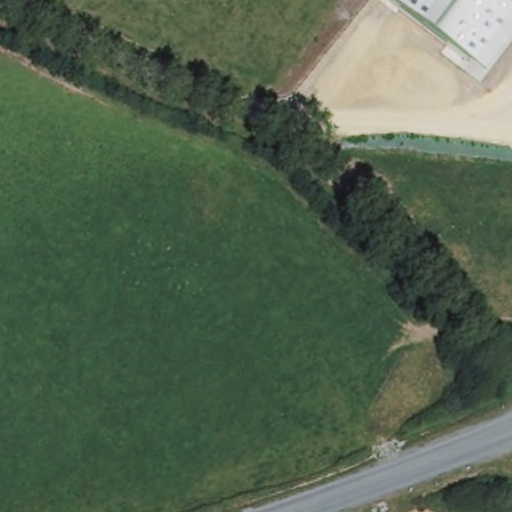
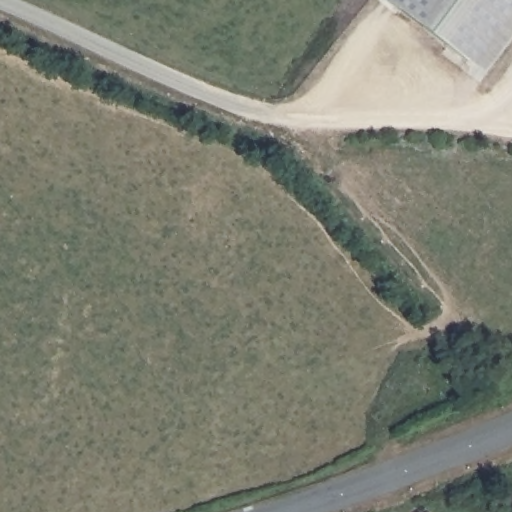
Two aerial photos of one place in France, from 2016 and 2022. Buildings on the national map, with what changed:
unchanged [(384,0),(512,0),(512,40),(483,77),(384,0)]

